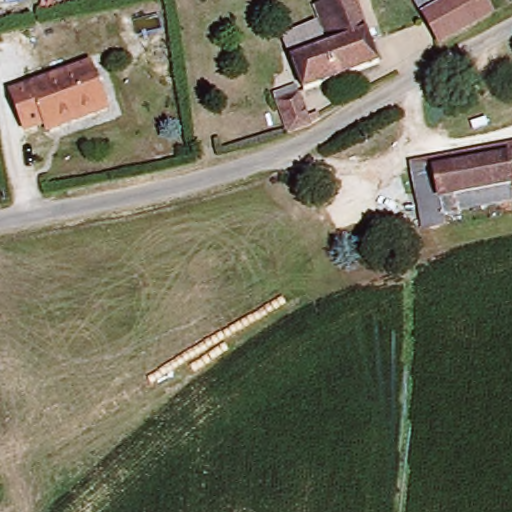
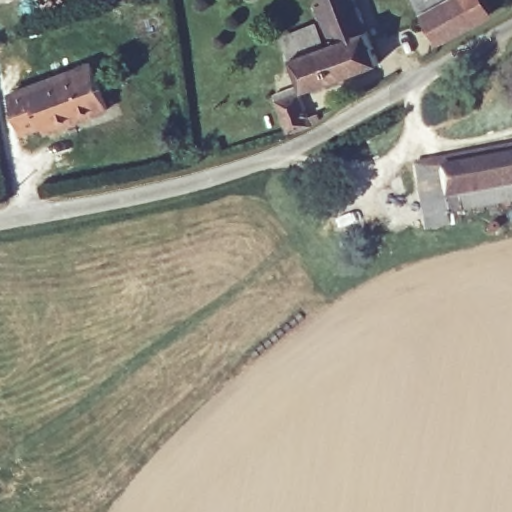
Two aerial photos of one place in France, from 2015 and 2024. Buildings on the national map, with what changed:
unchanged [(333,46),(319,15),(325,11),(319,0),(346,0),(361,29),(333,46)]
unchanged [(446,0),(426,11),(419,0),(446,0)]
unchanged [(426,11),(446,0),(490,0),(497,16),(441,46),(426,11)]
unchanged [(296,65),(333,46),(361,29),(377,59),(310,95),(296,65)]
unchanged [(50,123),(32,131),(16,96),(95,61),(115,106),(77,123),(56,133),(50,123)]
unchanged [(331,89),(343,111),(326,120),(314,96),(331,89)]
unchanged [(414,161),(506,141),(508,155),(436,167),(443,197),(509,183),(511,192),(512,192),(512,202),(426,220),(414,161)]
unchanged [(512,192),(511,192),(509,183),(443,197),(436,167),(508,155),(512,154),(512,192)]

